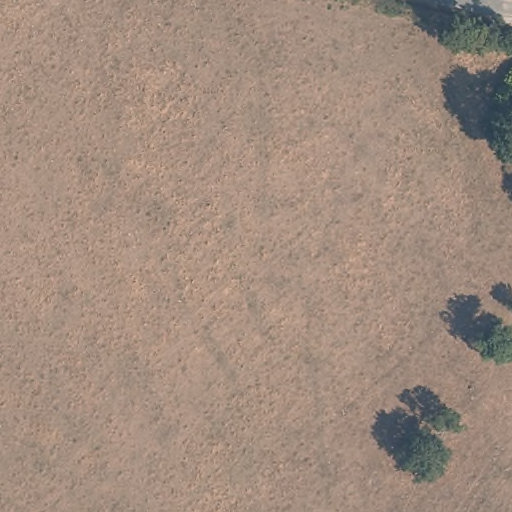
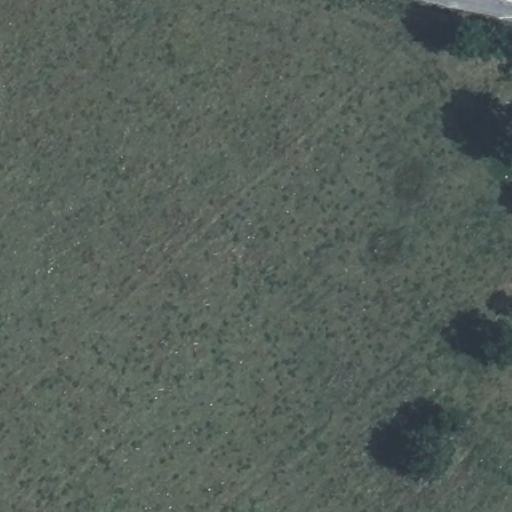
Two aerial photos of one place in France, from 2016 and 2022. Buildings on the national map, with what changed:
[]

